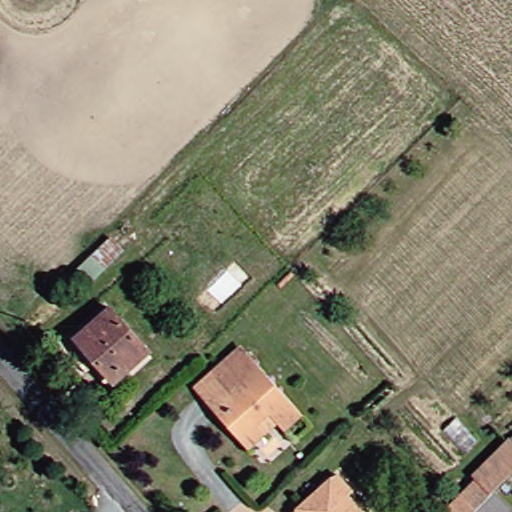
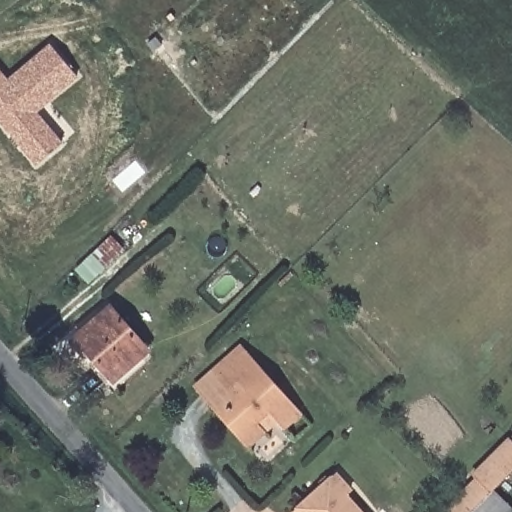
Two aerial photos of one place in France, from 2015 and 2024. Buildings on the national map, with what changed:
new [(37,111),(64,142),(34,166),(0,125),(0,70),(7,79),(50,43),(78,77),(37,111)]
unchanged [(135,238),(131,243),(101,273),(91,262),(123,227),(135,238)]
unchanged [(119,305),(156,347),(122,378),(85,338),(119,305)]
new [(218,377),(231,390),(241,380),(249,388),(223,412),(199,382),(242,342),(250,350),(218,377)]
unchanged [(305,413),(291,426),(274,408),(261,423),(269,433),(253,445),(223,412),(249,388),(241,380),(231,390),(218,377),(250,350),(305,413)]
unchanged [(512,505),(512,512),(463,512),(456,505),(476,484),(473,479),(512,441),(512,476),(498,490),(512,505)]
unchanged [(355,492),(349,497),(362,512),(301,512),(339,475),(355,492)]

